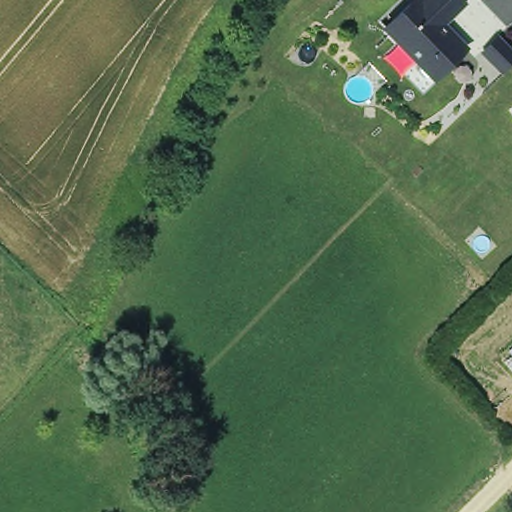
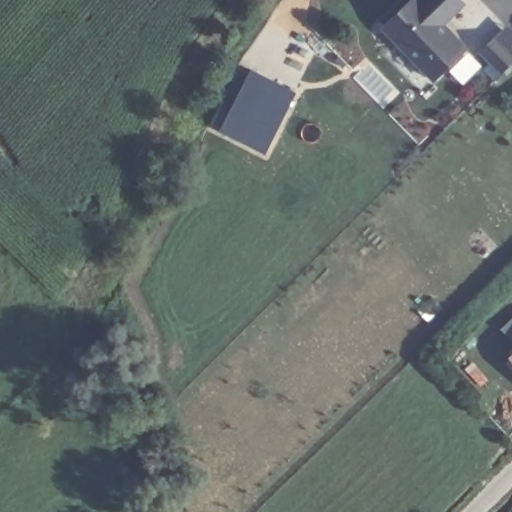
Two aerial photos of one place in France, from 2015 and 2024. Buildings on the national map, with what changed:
unchanged [(448,21),(468,46),(433,79),(383,25),(407,0),(464,0),(465,1),(448,21)]
new [(264,151),(218,127),(249,66),(294,89),(264,151)]
unchanged [(512,355),(512,357),(511,356),(512,355)]

